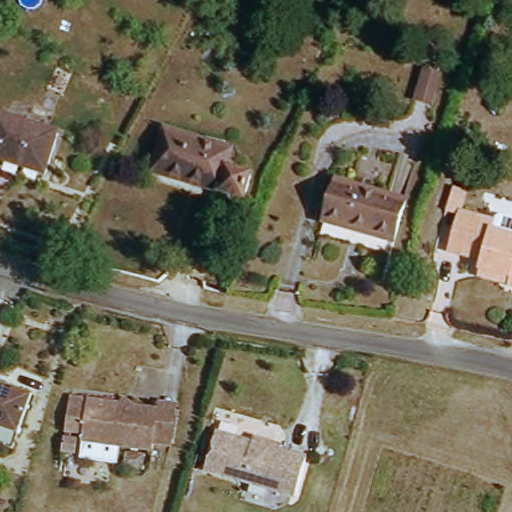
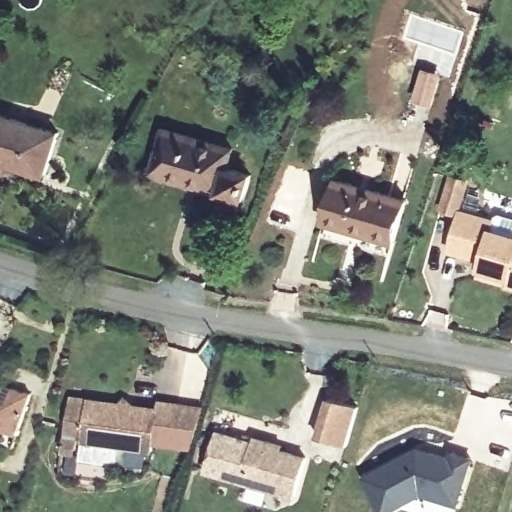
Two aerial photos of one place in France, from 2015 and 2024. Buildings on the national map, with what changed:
unchanged [(57,134),(44,175),(0,160),(0,115),(57,134)]
unchanged [(165,131),(232,151),(227,169),(252,177),(244,204),(152,176),(165,131)]
unchanged [(334,181),(402,202),(390,243),(321,222),(334,181)]
unchanged [(484,263),(452,253),(465,212),(499,222),(512,226),(512,288),(509,287),(479,278),(482,269),(484,263)]
unchanged [(0,422),(0,380),(32,390),(22,428),(0,422)]
unchanged [(177,415),(164,462),(148,457),(82,440),(83,433),(65,428),(69,411),(72,397),(90,402),(159,420),(161,411),(177,415)]
new [(347,446),(317,437),(329,399),(359,407),(347,446)]
unchanged [(280,456),(305,462),(295,501),(205,476),(214,439),(250,448),(252,441),(265,445),(280,448),(280,456)]
new [(420,495),(388,512),(380,512),(362,477),(417,448),(450,458),(452,452),(472,458),(458,505),(420,495)]

